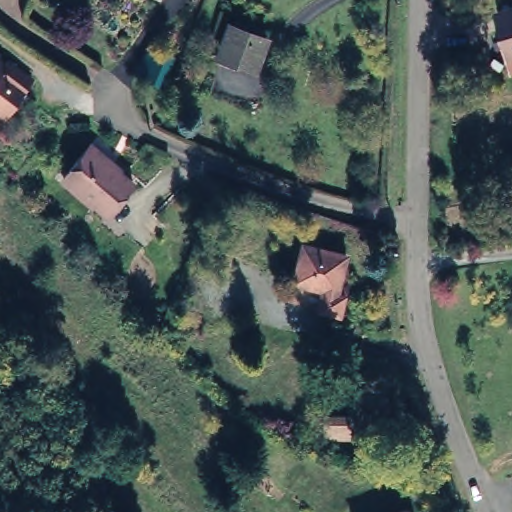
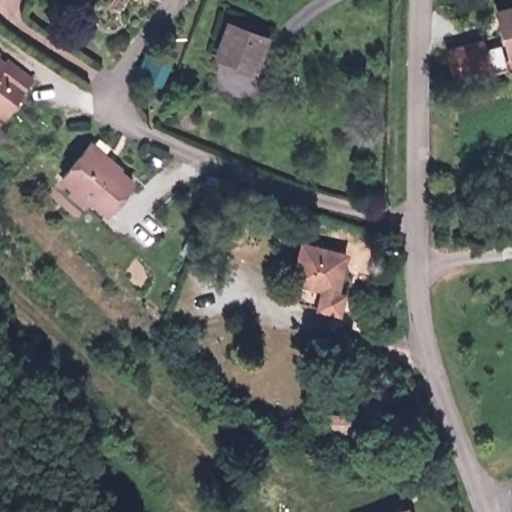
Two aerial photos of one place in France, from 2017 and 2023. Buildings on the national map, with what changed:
unchanged [(512,8),(512,53),(510,54),(498,11),(512,8)]
unchanged [(217,55),(221,44),(232,19),(268,33),(256,64),(237,57),(234,64),(217,55)]
unchanged [(0,124),(0,62),(28,83),(0,124)]
unchanged [(85,145),(133,184),(105,218),(57,185),(85,145)]
unchanged [(344,244),(342,256),(348,257),(342,278),(337,277),(336,282),(346,283),(341,298),(291,286),(303,235),(344,244)]
unchanged [(411,512),(374,512),(408,502),(411,512)]

